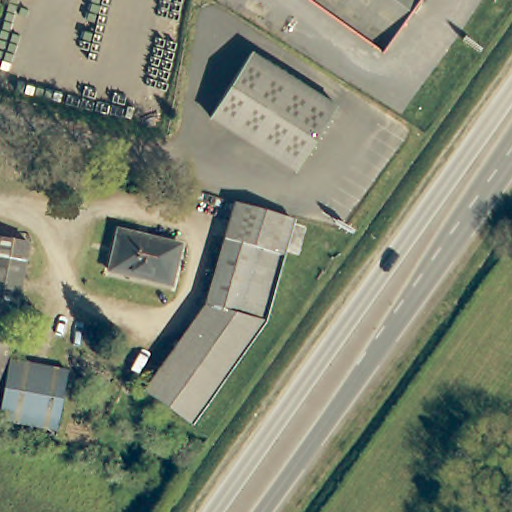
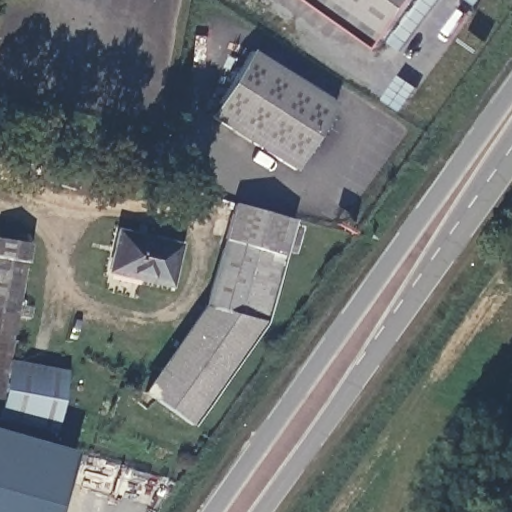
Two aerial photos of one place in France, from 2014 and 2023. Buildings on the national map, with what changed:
unchanged [(314,0),(406,0),(374,43),(314,0)]
unchanged [(203,117),(243,52),(330,107),(293,166),(272,160),(203,117)]
unchanged [(204,307),(227,210),(286,225),(260,326),(193,426),(146,396),(204,307)]
unchanged [(177,245),(169,287),(106,271),(114,230),(177,245)]
unchanged [(0,401),(0,237),(26,242),(19,288),(8,358),(1,401),(0,401)]
unchanged [(1,401),(8,358),(73,371),(63,433),(0,424),(0,412),(1,401)]
new [(57,512),(0,512),(0,431),(75,452),(57,512)]

